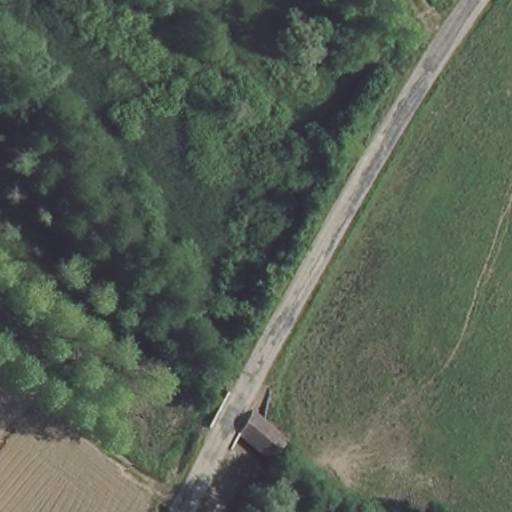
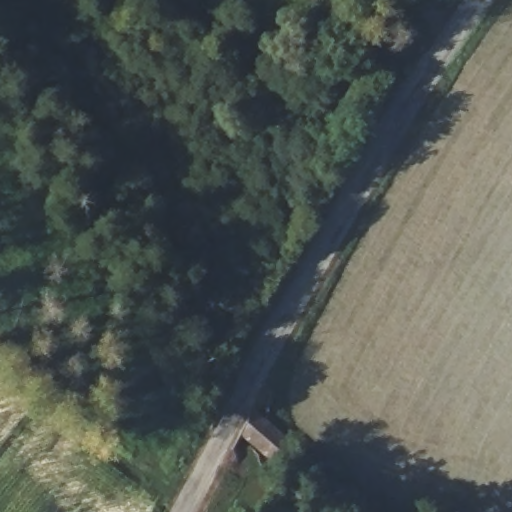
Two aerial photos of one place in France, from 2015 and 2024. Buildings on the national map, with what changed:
unchanged [(259,416),(290,438),(279,455),(248,434),(259,416)]

